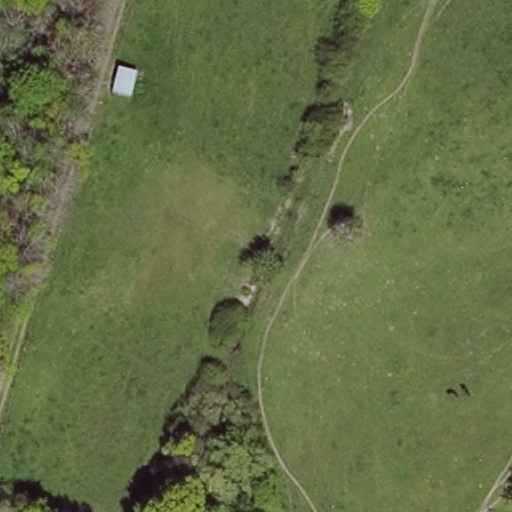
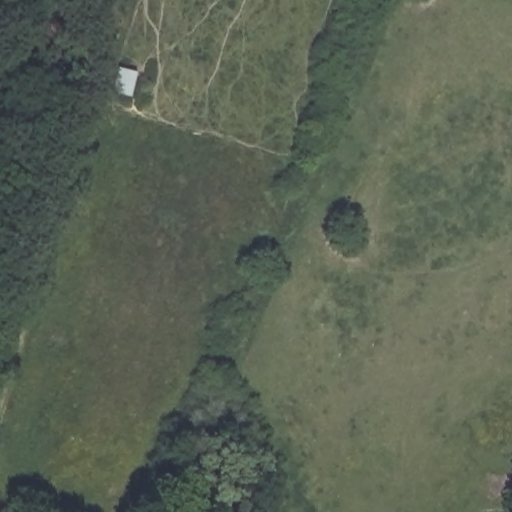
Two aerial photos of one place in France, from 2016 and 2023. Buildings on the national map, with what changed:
unchanged [(138,68),(130,90),(112,85),(118,64),(138,68)]

